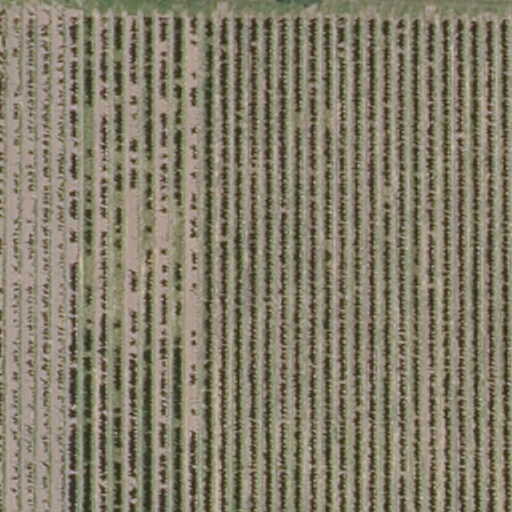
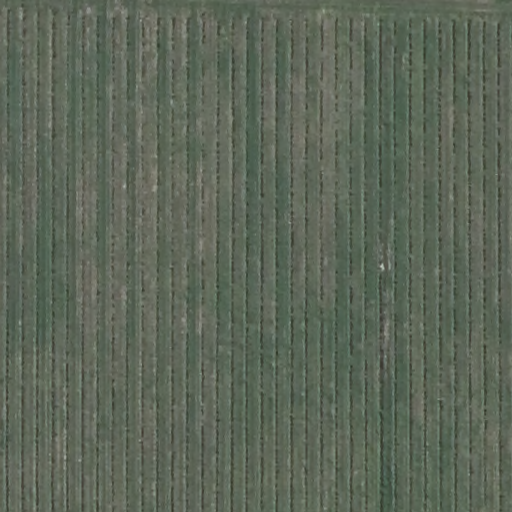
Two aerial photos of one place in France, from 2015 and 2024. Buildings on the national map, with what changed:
[]

